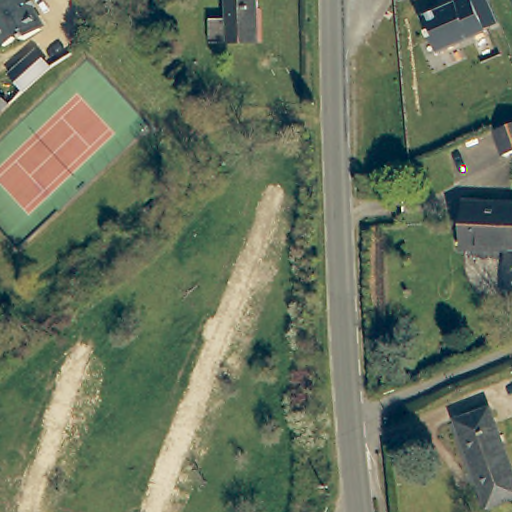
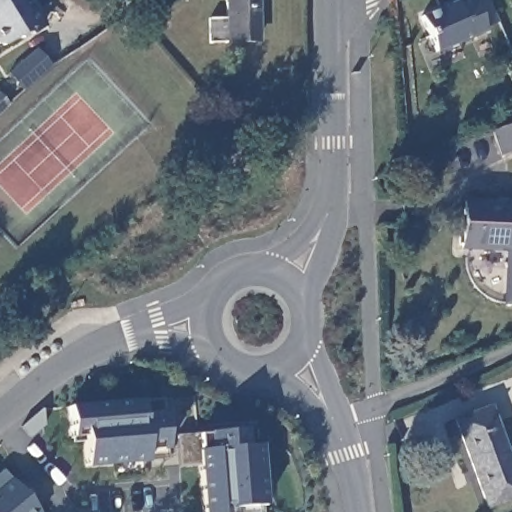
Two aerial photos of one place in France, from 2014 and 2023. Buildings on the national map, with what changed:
unchanged [(0,0),(31,0),(45,24),(29,34),(21,33),(8,41),(1,39),(0,37),(0,0)]
unchanged [(258,6),(255,6),(256,42),(210,43),(211,18),(227,18),(227,0),(258,0),(258,6)]
unchanged [(499,23),(484,30),(486,33),(438,55),(419,15),(455,0),(472,0),(473,1),(475,0),(491,0),(499,23)]
new [(33,53),(48,70),(21,93),(6,77),(33,53)]
unchanged [(0,114),(0,94),(9,105),(0,114)]
unchanged [(512,123),(512,152),(501,156),(492,130),(512,123)]
unchanged [(512,204),(512,305),(502,305),(506,251),(461,248),(463,201),(512,204)]
new [(161,402),(165,452),(158,452),(158,446),(144,447),(145,464),(85,469),(81,430),(69,431),(68,409),(161,402)]
unchanged [(456,421),(489,408),(512,472),(512,496),(487,506),(456,421)]
new [(198,435),(209,434),(209,433),(245,430),(247,446),(259,445),(264,506),(234,508),(235,512),(204,512),(199,465),(179,466),(177,435),(198,433),(198,435)]
new [(9,480),(36,512),(0,512),(0,474),(3,472),(9,480)]

